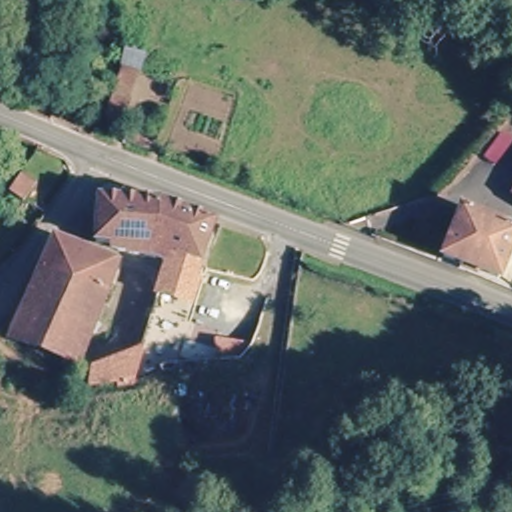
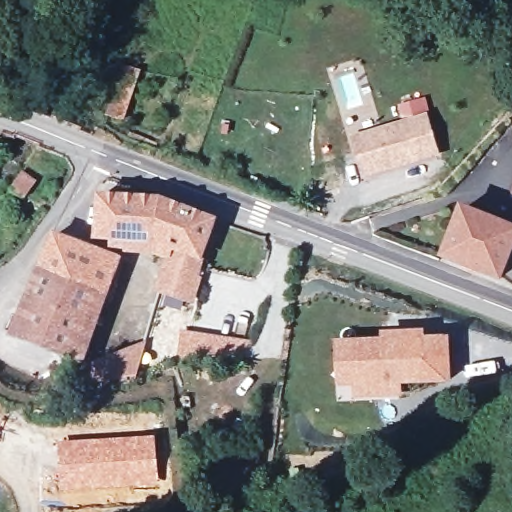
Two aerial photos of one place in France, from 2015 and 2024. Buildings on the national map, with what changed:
unchanged [(128,120),(106,114),(123,64),(145,72),(128,120)]
new [(431,114),(442,156),(362,179),(348,137),(403,120),(397,105),(427,97),(431,114)]
unchanged [(26,163),(40,173),(29,190),(14,179),(26,163)]
unchanged [(128,244),(128,239),(105,237),(106,192),(169,201),(162,242),(208,257),(207,261),(210,262),(204,283),(201,282),(200,282),(174,273),(178,262),(156,251),(128,244)]
unchanged [(222,220),(208,257),(162,242),(169,201),(222,220)]
unchanged [(503,274),(451,253),(468,212),(512,229),(512,253),(503,274)]
unchanged [(41,271),(60,232),(117,257),(101,296),(41,271)]
unchanged [(101,296),(86,357),(15,330),(41,271),(101,296)]
new [(382,338),(381,331),(426,330),(426,337),(451,336),(453,382),(404,385),(404,396),(352,398),(352,385),(338,385),(337,340),(382,338)]
new [(96,359),(131,345),(146,342),(135,378),(121,376),(90,375),(96,359)]
new [(156,436),(159,483),(61,491),(58,441),(156,436)]

